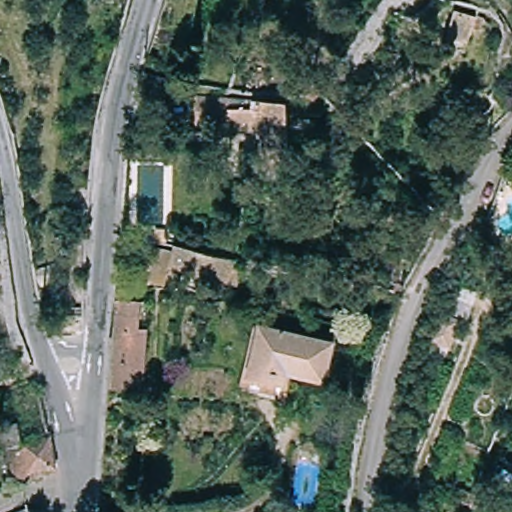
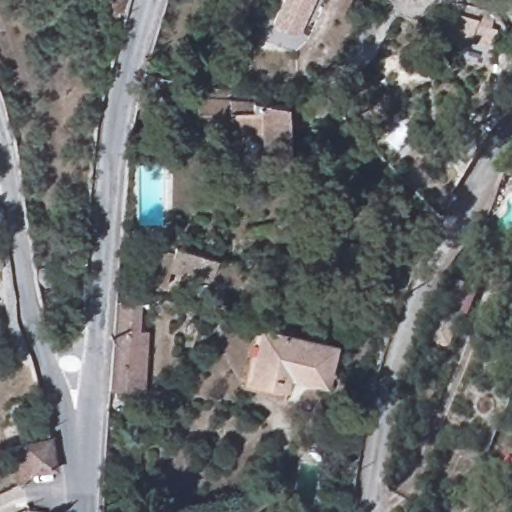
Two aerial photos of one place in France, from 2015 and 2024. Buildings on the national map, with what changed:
new [(271,23),(281,0),(314,0),(298,36),(271,23)]
unchanged [(468,44),(448,39),(452,16),(473,21),(468,44)]
unchanged [(292,108),(282,175),(258,171),(262,136),(230,131),(229,126),(199,120),(203,93),(228,96),(292,108)]
unchanged [(512,180),(512,191),(510,188),(512,180)]
unchanged [(229,287),(172,279),(170,294),(147,291),(153,254),(232,266),(229,287)]
unchanged [(450,288),(474,298),(463,326),(456,324),(443,359),(424,353),(450,288)]
unchanged [(51,314),(49,297),(59,295),(60,313),(51,314)]
unchanged [(136,390),(114,387),(122,300),(145,302),(136,390)]
unchanged [(335,346),(326,388),(290,380),(287,394),(243,384),(255,328),(335,346)]
unchanged [(21,423),(25,442),(54,436),(55,442),(58,456),(60,471),(16,476),(2,427),(21,423)]

